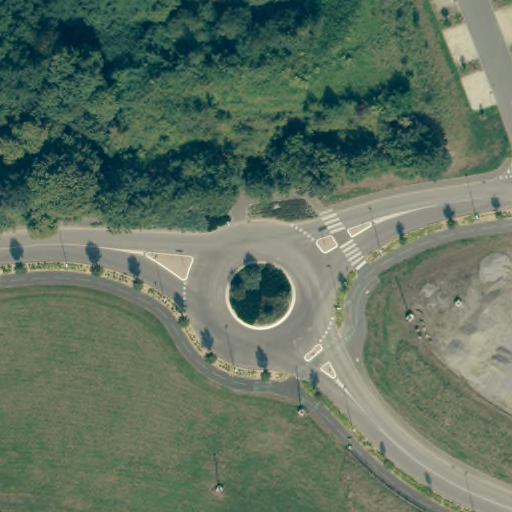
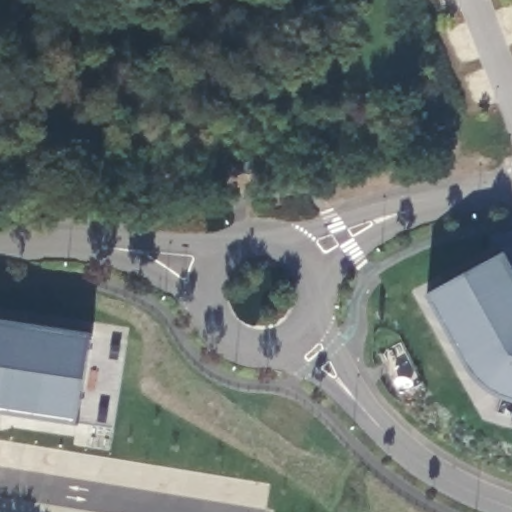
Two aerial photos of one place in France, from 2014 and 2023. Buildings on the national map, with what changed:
new [(512,268),(512,404),(505,403),(494,398),(483,391),(477,385),(466,371),(426,298),(504,255),(512,268)]
new [(90,336),(123,341),(111,429),(76,426),(0,415),(0,320),(90,336)]

